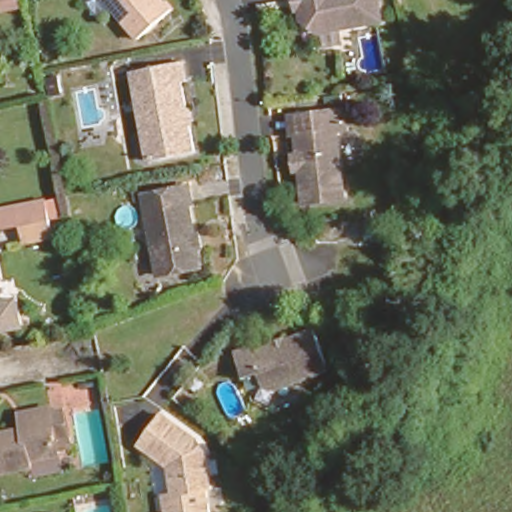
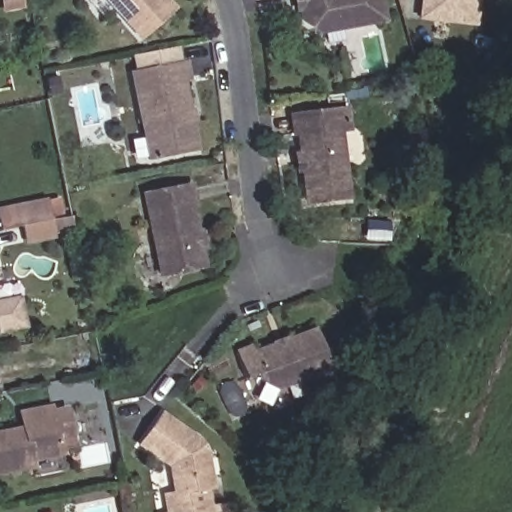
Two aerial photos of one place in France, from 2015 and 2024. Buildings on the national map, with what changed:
unchanged [(3,13),(1,0),(18,0),(20,9),(3,13)]
unchanged [(109,0),(165,0),(172,9),(139,36),(109,0)]
unchanged [(314,28),(297,15),(295,0),(374,0),(376,18),(314,28)]
new [(420,0),(478,0),(475,26),(417,19),(420,0)]
unchanged [(142,129),(131,66),(183,59),(186,74),(179,75),(192,145),(160,153),(146,156),(142,129)]
unchanged [(307,196),(294,115),(344,105),(345,116),(347,130),(336,131),(345,189),(307,196)]
unchanged [(195,201),(189,204),(200,264),(158,274),(141,193),(192,182),(195,201)]
unchanged [(18,223),(0,226),(0,207),(15,204),(58,194),(61,215),(49,218),(52,238),(22,244),(18,223)]
unchanged [(25,327),(0,332),(0,297),(19,294),(25,327)]
unchanged [(252,345),(316,319),(330,357),(276,379),(261,374),(258,366),(246,371),(236,343),(249,338),(252,345)]
unchanged [(16,402),(45,397),(45,403),(64,399),(67,427),(50,431),(52,447),(26,452),(27,461),(0,466),(0,430),(5,429),(5,422),(18,420),(17,412),(16,402)]
unchanged [(203,482),(206,499),(163,508),(161,489),(170,489),(168,461),(138,438),(162,407),(198,433),(203,443),(209,481),(203,482)]
unchanged [(211,504),(213,512),(154,512),(153,510),(164,509),(211,504)]

